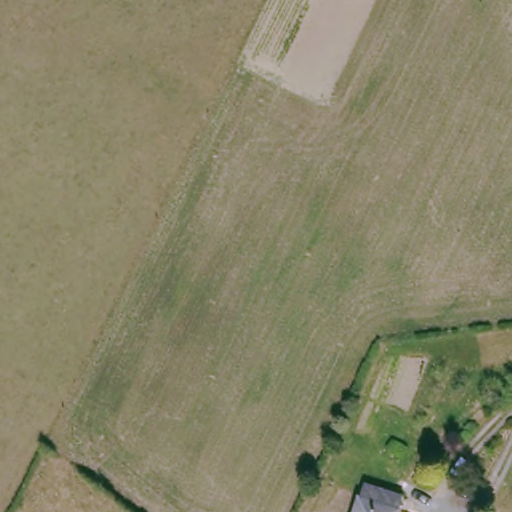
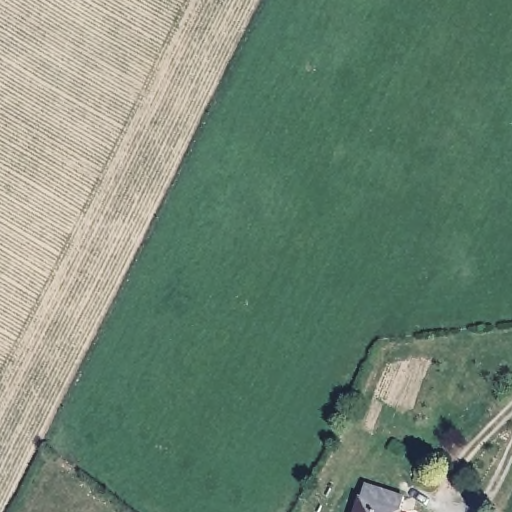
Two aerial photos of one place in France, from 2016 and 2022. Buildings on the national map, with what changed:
unchanged [(348,512),(358,479),(397,492),(391,512),(348,512)]

